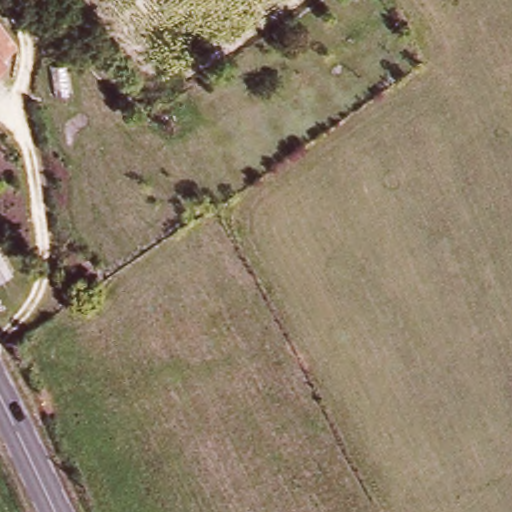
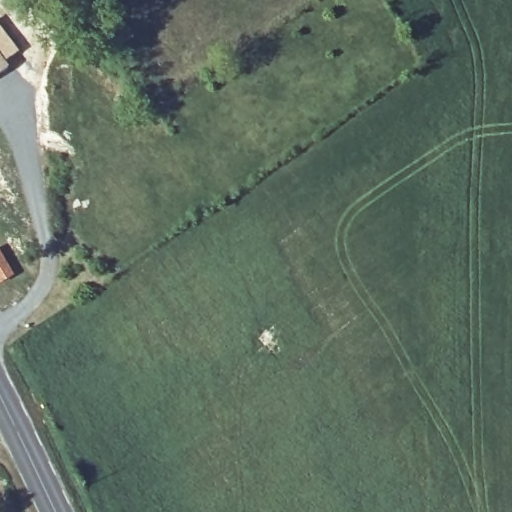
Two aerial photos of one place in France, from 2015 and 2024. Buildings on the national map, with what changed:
unchanged [(12,54),(0,63),(0,36),(12,54)]
unchanged [(5,74),(0,76),(0,67),(5,74)]
unchanged [(15,278),(0,285),(0,247),(15,278)]

